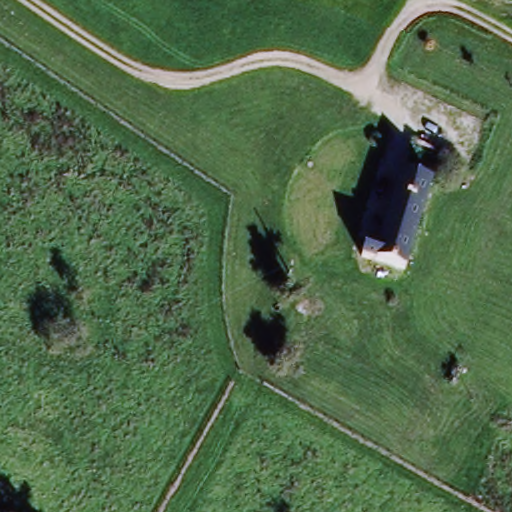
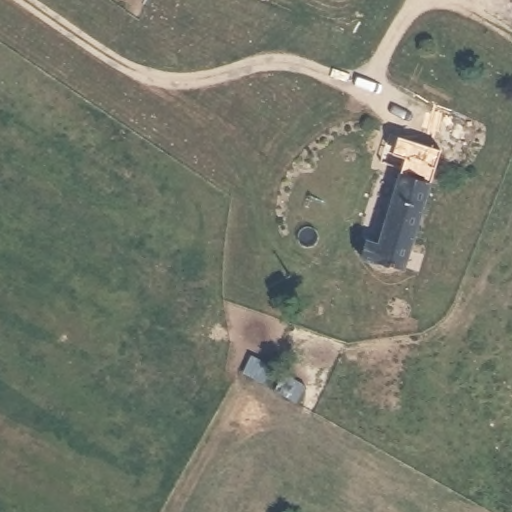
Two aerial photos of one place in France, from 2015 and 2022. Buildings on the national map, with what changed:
unchanged [(437,180),(404,274),(361,257),(370,232),(382,235),(405,169),(437,180)]

